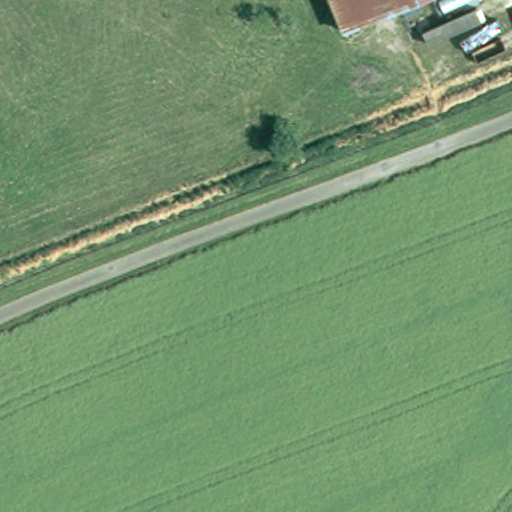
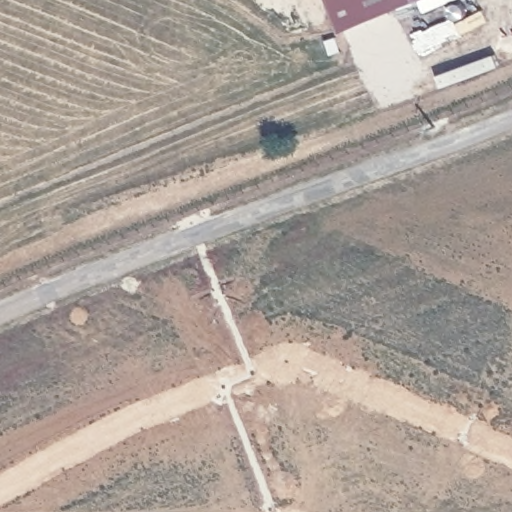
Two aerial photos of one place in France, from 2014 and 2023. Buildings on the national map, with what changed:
unchanged [(348,30),(335,0),(421,0),(348,30)]

